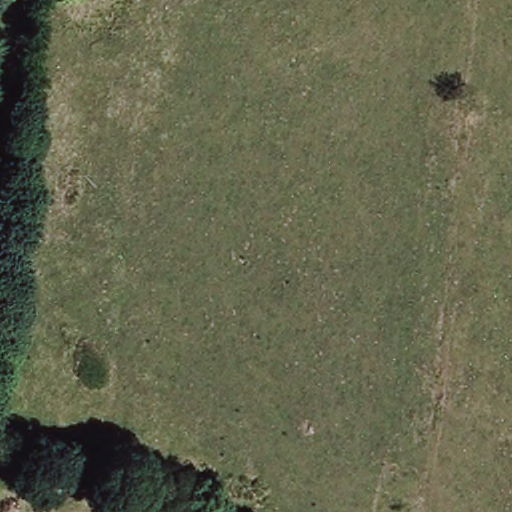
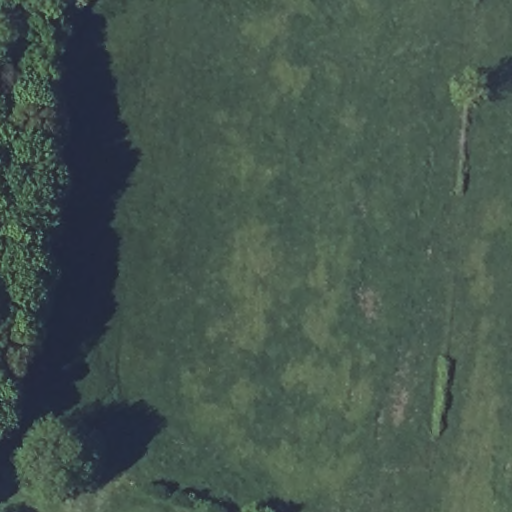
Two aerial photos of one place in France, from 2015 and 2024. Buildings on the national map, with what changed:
[]

